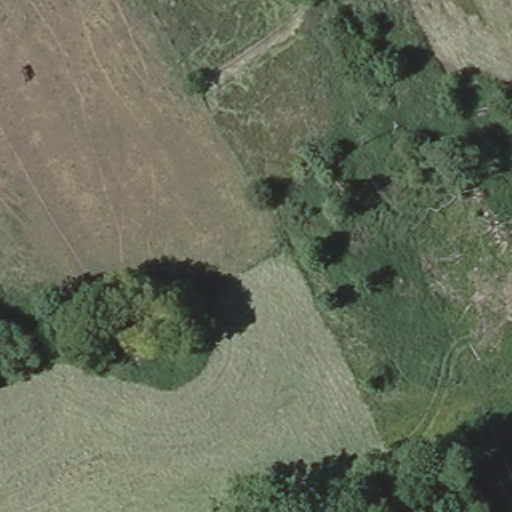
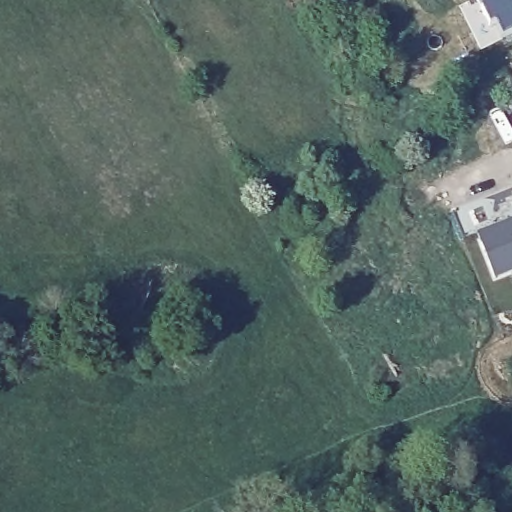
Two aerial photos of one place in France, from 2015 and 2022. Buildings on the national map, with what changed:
new [(495,21),(489,24),(477,0),(512,0),(512,33),(502,38),(495,21)]
new [(475,233),(512,219),(512,272),(493,279),(475,233)]

